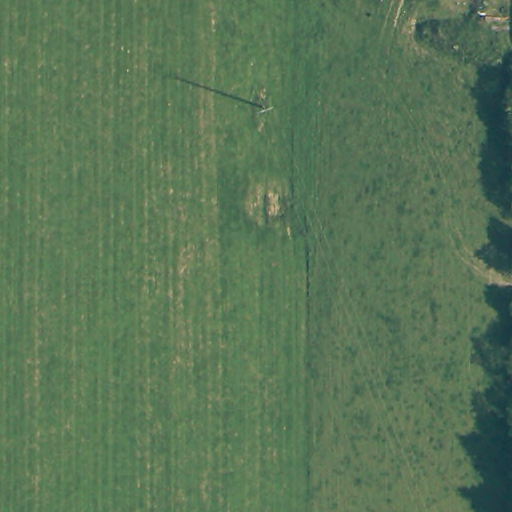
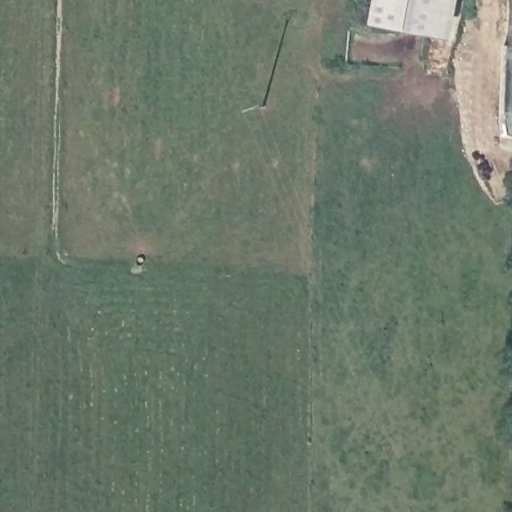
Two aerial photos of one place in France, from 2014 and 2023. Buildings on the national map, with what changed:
new [(453,39),(371,24),(376,0),(461,0),(453,39)]

